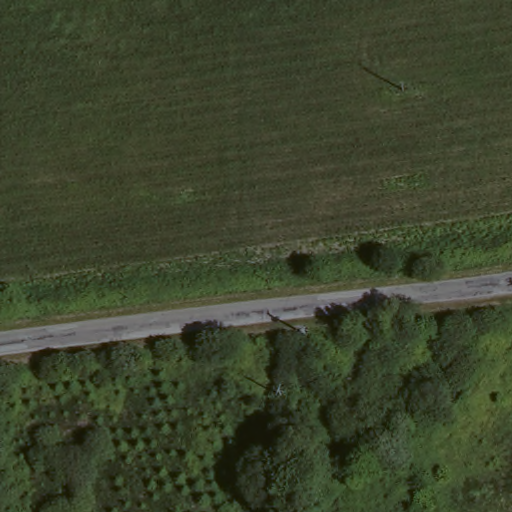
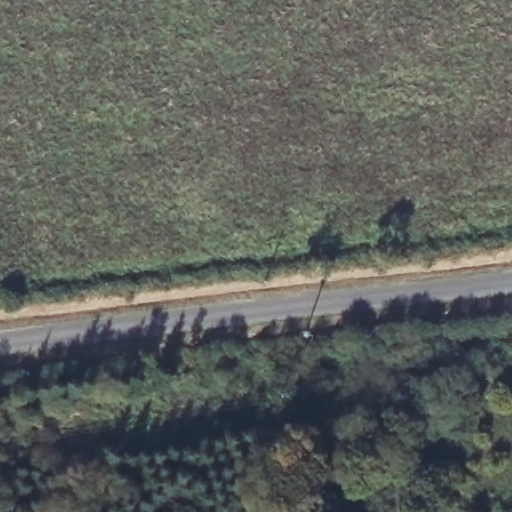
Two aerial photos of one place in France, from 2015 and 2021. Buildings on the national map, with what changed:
[]

